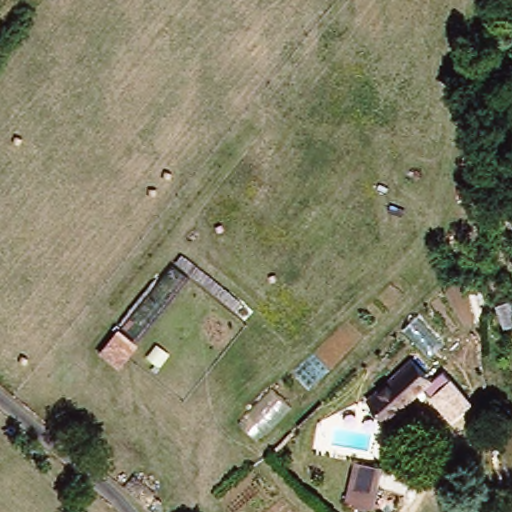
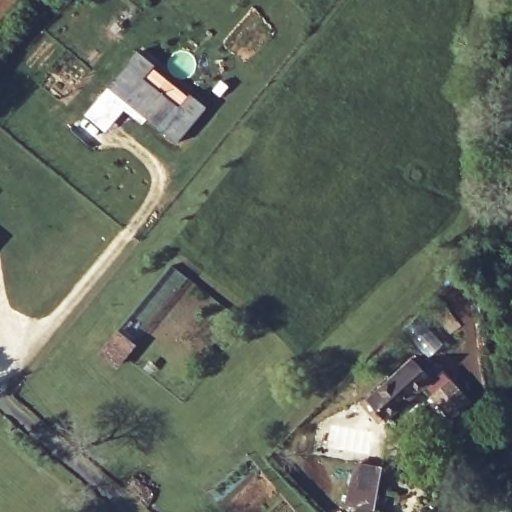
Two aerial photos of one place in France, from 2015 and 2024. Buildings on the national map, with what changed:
new [(138,53),(153,64),(143,78),(180,107),(190,95),(205,108),(177,141),(110,87),(138,53)]
unchanged [(407,355),(431,377),(390,425),(377,414),(366,405),(407,355)]
unchanged [(360,466),(380,470),(375,493),(372,512),(369,512),(367,511),(343,507),(350,471),(358,472),(360,466)]

